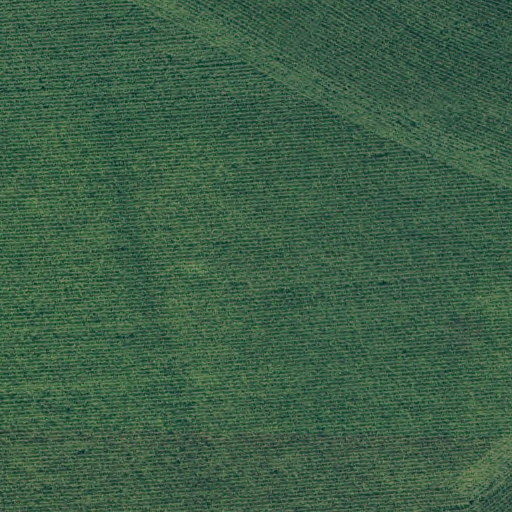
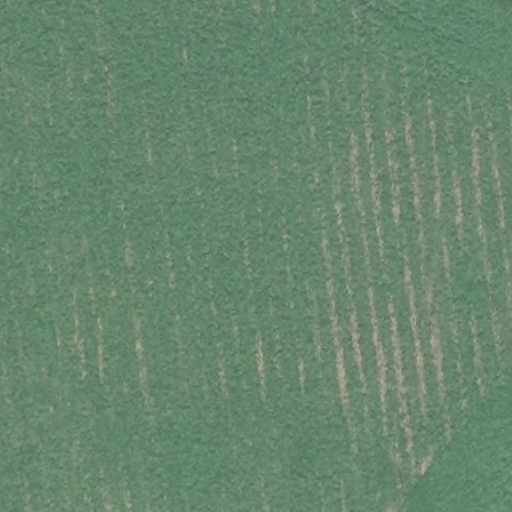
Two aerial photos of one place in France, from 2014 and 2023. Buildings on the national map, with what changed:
[]

